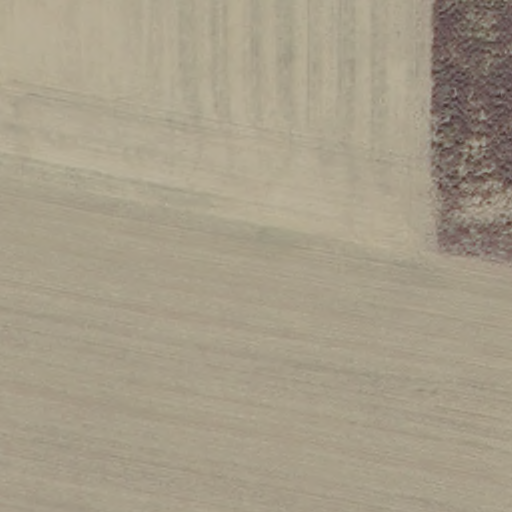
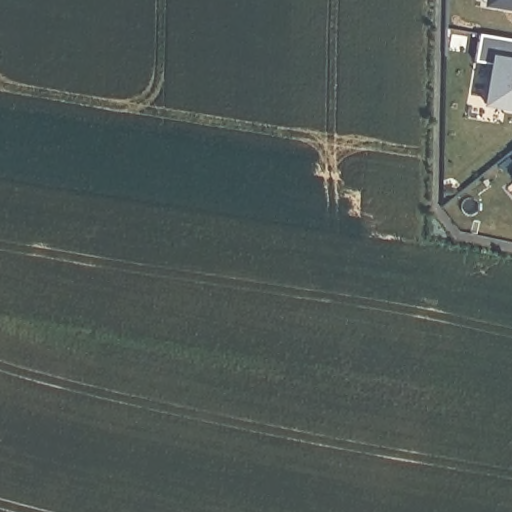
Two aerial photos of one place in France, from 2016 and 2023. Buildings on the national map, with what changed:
new [(512,12),(497,10),(487,8),(488,0),(512,0),(512,12)]
new [(512,106),(491,103),(497,64),(480,61),(485,34),(512,39),(512,106)]

